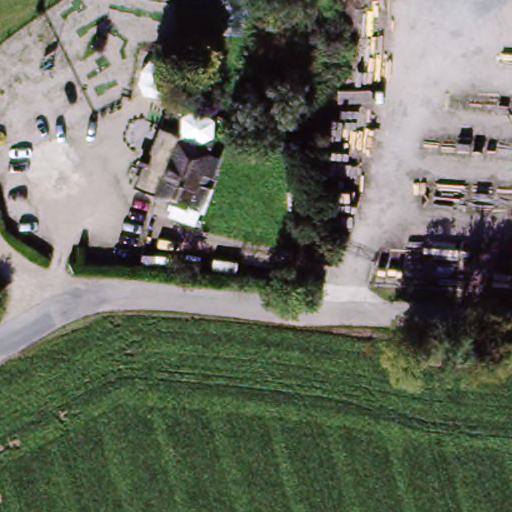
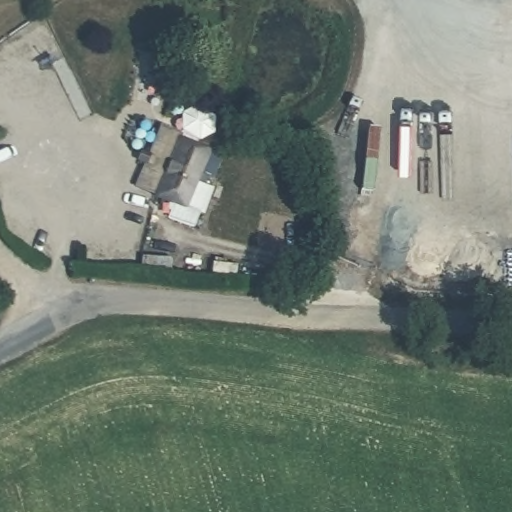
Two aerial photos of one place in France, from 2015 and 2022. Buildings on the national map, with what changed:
unchanged [(155,195),(183,141),(210,155),(198,177),(207,182),(203,190),(207,193),(195,216),(155,195)]

